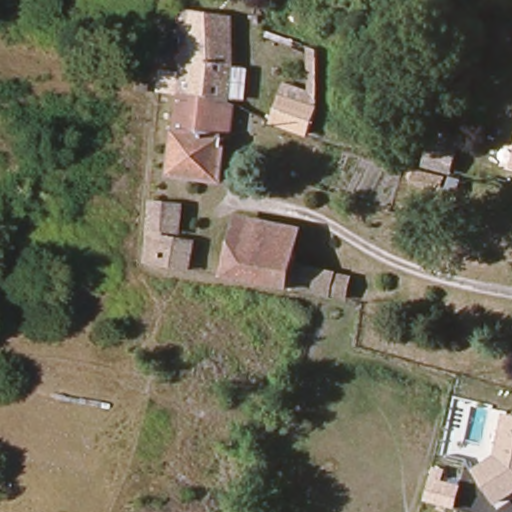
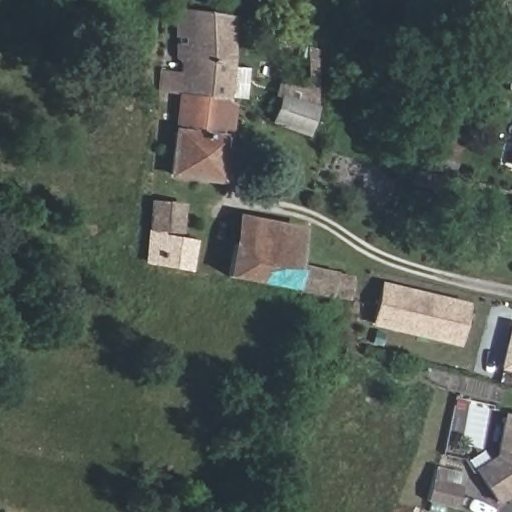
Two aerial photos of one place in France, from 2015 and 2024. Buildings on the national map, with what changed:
unchanged [(187,58),(174,57),(177,21),(190,22),(191,14),(233,16),(232,24),(230,96),(184,91),(186,71),(187,58)]
unchanged [(310,107),(312,48),(320,50),(318,109),(317,135),(296,126),(279,119),(286,99),(310,107)]
unchanged [(184,98),(184,91),(230,96),(225,130),(232,131),(227,174),(176,169),(182,107),(184,98)]
unchanged [(455,166),(427,157),(430,146),(458,154),(455,166)]
unchanged [(185,212),(180,239),(164,236),(162,244),(188,247),(184,270),(145,263),(150,210),(185,212)]
unchanged [(240,221),(299,231),(295,255),(235,247),(240,221)]
unchanged [(295,255),(291,273),(346,282),(344,301),(230,280),(235,247),(295,255)]
new [(371,326),(380,282),(469,303),(460,347),(371,326)]
new [(512,326),(512,370),(501,367),(511,326),(512,326)]
unchanged [(504,412),(512,414),(512,495),(497,505),(475,469),(496,455),(504,412)]
new [(432,475),(460,483),(453,508),(425,501),(432,475)]

